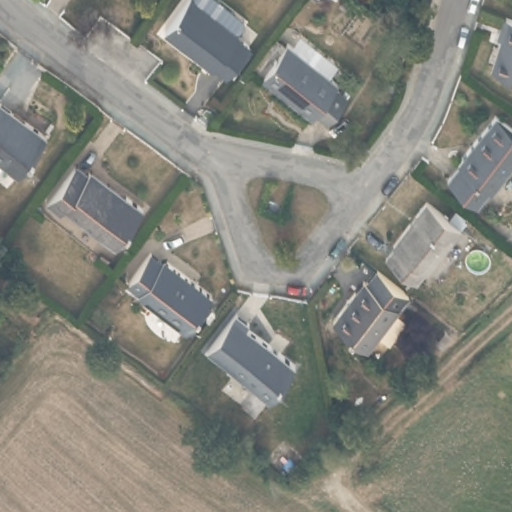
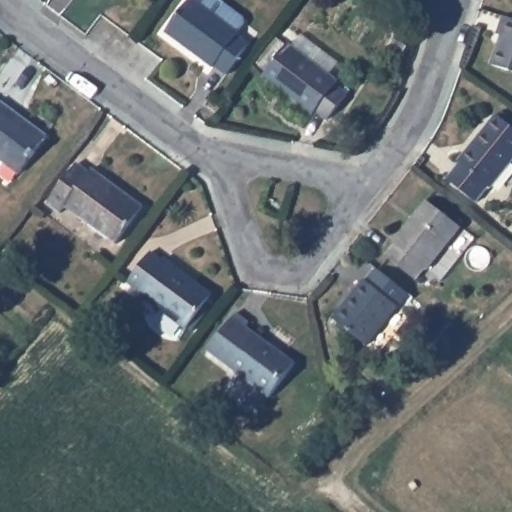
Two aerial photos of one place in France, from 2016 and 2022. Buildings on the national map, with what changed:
unchanged [(210,71),(208,73),(160,37),(186,3),(187,4),(189,0),(207,0),(229,16),(238,23),(239,29),(232,37),(234,38),(232,40),(244,49),(222,80),(210,71)]
unchanged [(487,66),(497,36),(493,35),(499,17),(512,21),(512,74),(487,66)]
unchanged [(342,94),(322,120),(310,111),(307,115),(257,77),(282,44),(332,81),(330,85),(342,94)]
unchanged [(4,101),(19,112),(31,121),(52,137),(25,174),(9,163),(1,173),(0,174),(0,101),(2,103),(4,101)]
unchanged [(492,189),(490,187),(477,203),(447,179),(460,163),(458,162),(496,115),(512,128),(512,164),(492,189)]
unchanged [(116,244),(65,206),(60,213),(47,204),(74,166),(77,163),(89,172),(91,169),(126,195),(144,207),(116,244)]
unchanged [(427,270),(425,269),(416,281),(386,257),(395,245),(393,244),(427,201),(461,228),(427,270)]
unchanged [(192,332),(187,328),(186,329),(138,294),(140,292),(127,283),(150,252),(162,261),(164,259),(212,295),(206,303),(211,306),(192,332)]
unchanged [(370,356),(358,346),(324,320),(355,280),(357,282),(367,269),(399,294),(389,307),(401,317),(370,356)]
unchanged [(296,363),(270,398),(207,351),(237,313),(250,322),(247,326),(296,363)]
unchanged [(441,345),(440,344),(436,340),(444,331),(448,335),(450,336),(441,345)]

